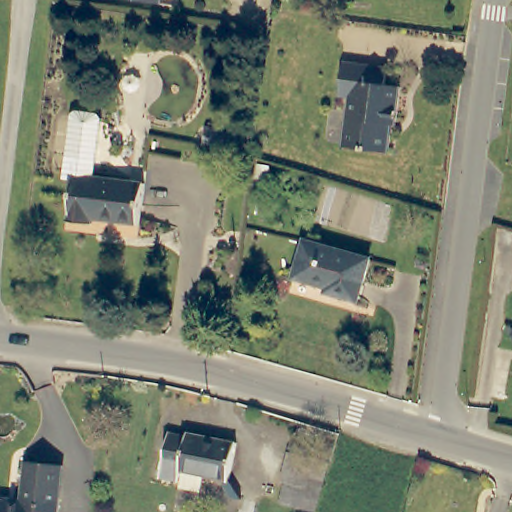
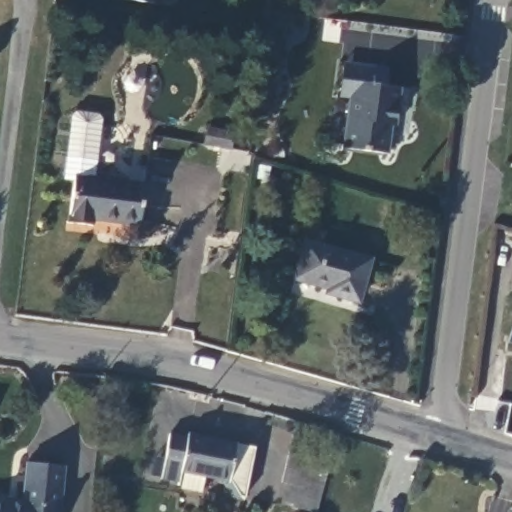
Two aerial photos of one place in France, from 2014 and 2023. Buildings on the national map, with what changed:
unchanged [(127,0),(158,0),(158,2),(127,0)]
unchanged [(384,84),(401,85),(397,125),(392,125),(389,153),(343,148),(349,99),(336,97),(340,62),(358,65),(385,68),(384,84)]
unchanged [(98,128),(93,177),(73,176),(63,175),(69,123),(70,115),(74,112),(96,114),(99,118),(98,128)]
unchanged [(145,183),(141,223),(92,218),(92,226),(68,223),(73,176),(93,177),(145,183)]
unchanged [(332,296),(334,291),(300,282),(310,243),(376,261),(365,305),(332,296)]
unchanged [(177,486),(180,470),(178,470),(176,479),(157,475),(166,432),(184,436),(185,432),(234,442),(226,480),(201,475),(198,490),(177,486)]
unchanged [(288,486),(285,484),(294,453),(329,463),(315,512),(309,512),(283,505),(288,486)]
unchanged [(26,496),(31,457),(67,460),(63,512),(0,512),(0,495),(26,496)]

